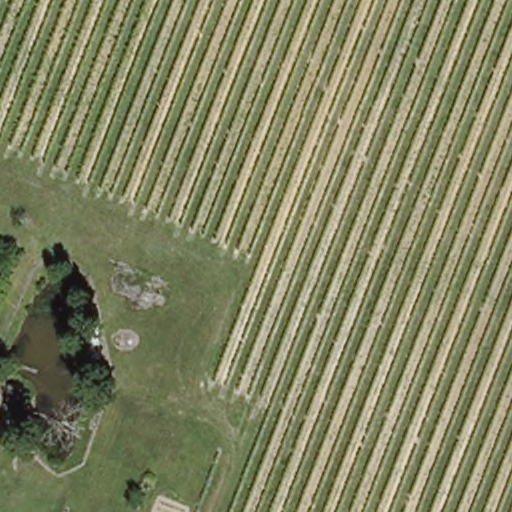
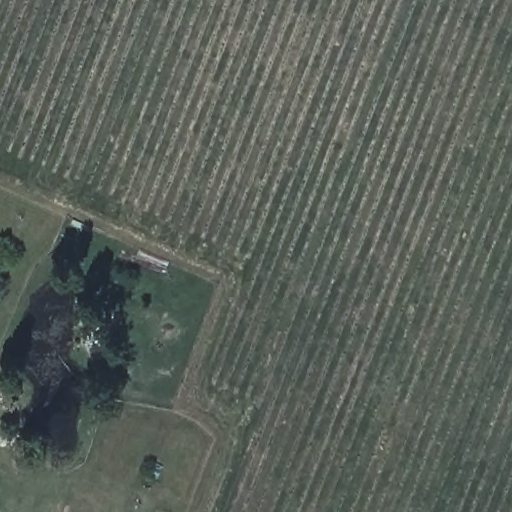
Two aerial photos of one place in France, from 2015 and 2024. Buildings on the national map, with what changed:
unchanged [(12,395),(7,414),(0,412),(0,396),(0,393),(12,395)]

